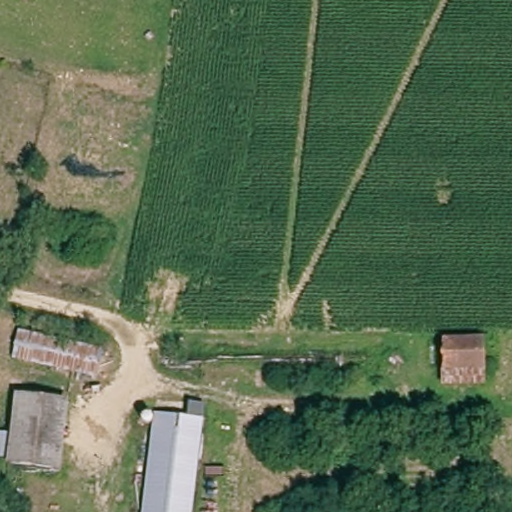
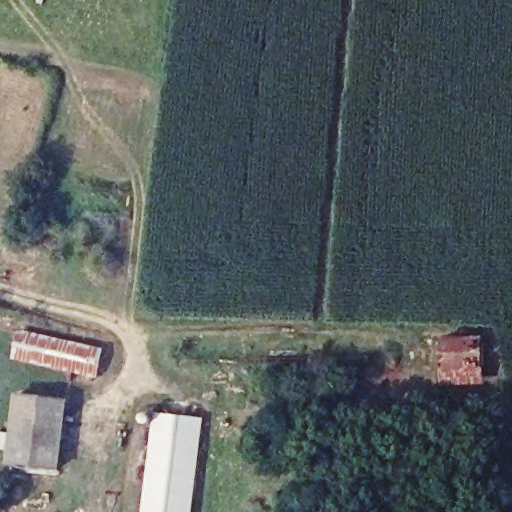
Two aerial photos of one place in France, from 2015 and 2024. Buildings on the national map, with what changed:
unchanged [(18,327),(103,348),(97,376),(11,356),(18,327)]
unchanged [(443,388),(443,374),(443,340),(483,339),(483,374),(483,389),(443,388)]
unchanged [(2,429),(14,431),(19,392),(75,400),(66,471),(11,463),(0,461),(0,445),(2,429)]
unchanged [(149,512),(162,405),(209,410),(197,512),(149,512)]

